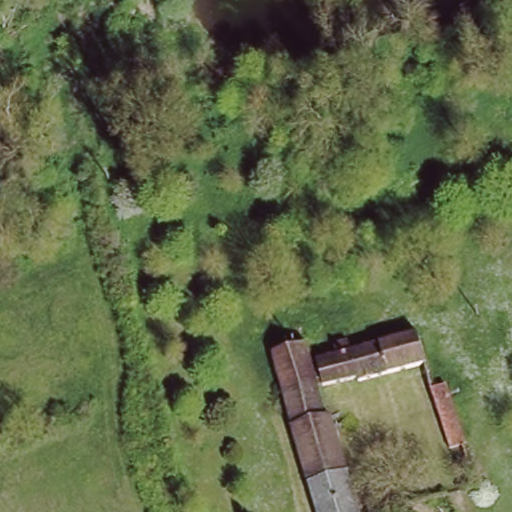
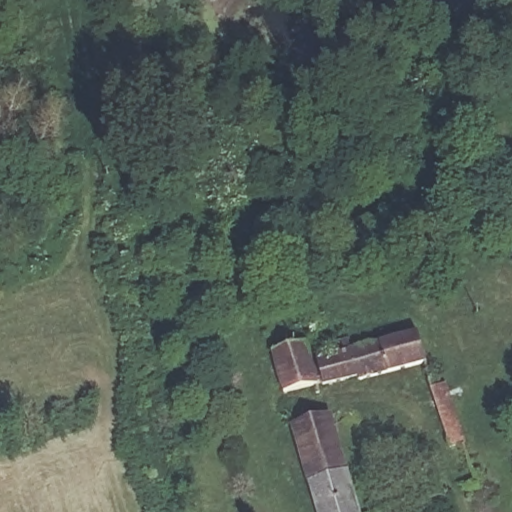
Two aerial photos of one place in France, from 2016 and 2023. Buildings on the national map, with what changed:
unchanged [(360,382),(358,379),(325,389),(317,363),(333,358),(330,346),(347,341),(351,352),(418,331),(420,363),(360,382)]
unchanged [(272,354),(305,346),(327,420),(332,419),(359,512),(316,512),(272,354)]
unchanged [(451,469),(425,387),(438,383),(466,463),(451,469)]

